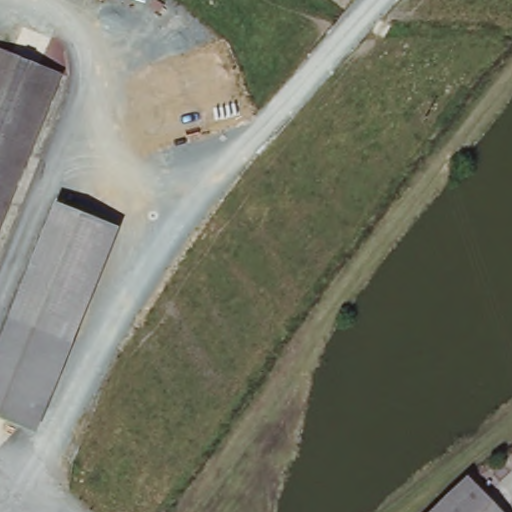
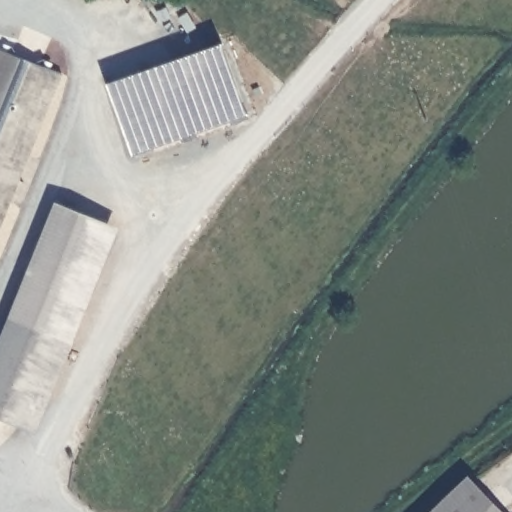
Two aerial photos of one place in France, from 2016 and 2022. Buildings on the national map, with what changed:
unchanged [(0,234),(0,48),(66,76),(0,234)]
new [(213,61),(234,133),(114,167),(93,95),(213,61)]
unchanged [(56,204),(118,229),(75,337),(61,330),(15,311),(56,204)]
unchanged [(0,414),(0,347),(15,311),(61,330),(24,424),(0,414)]
unchanged [(75,337),(38,430),(24,424),(61,330),(75,337)]
unchanged [(475,477),(507,512),(437,512),(475,477)]

